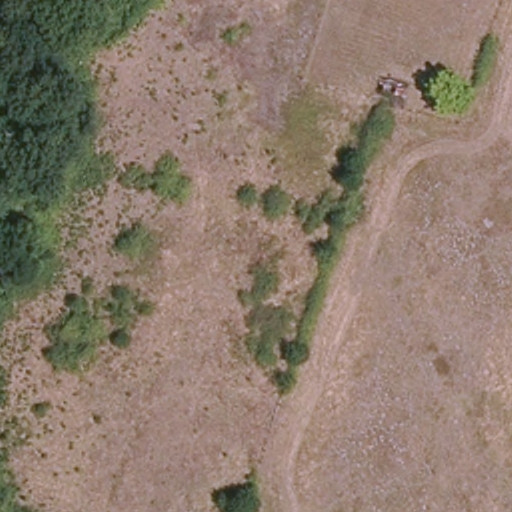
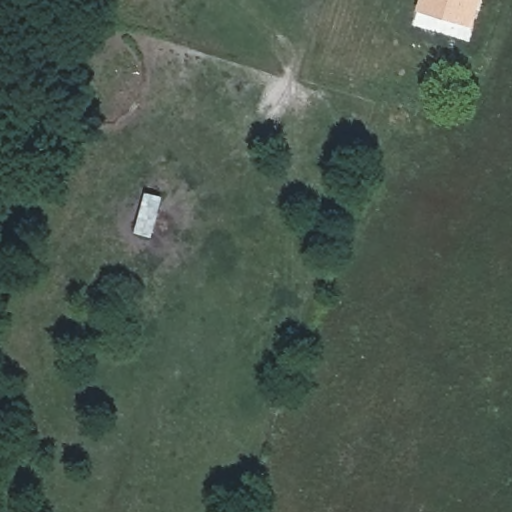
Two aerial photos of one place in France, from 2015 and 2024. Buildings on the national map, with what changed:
new [(482,0),(474,28),(417,11),(421,0),(482,0)]

